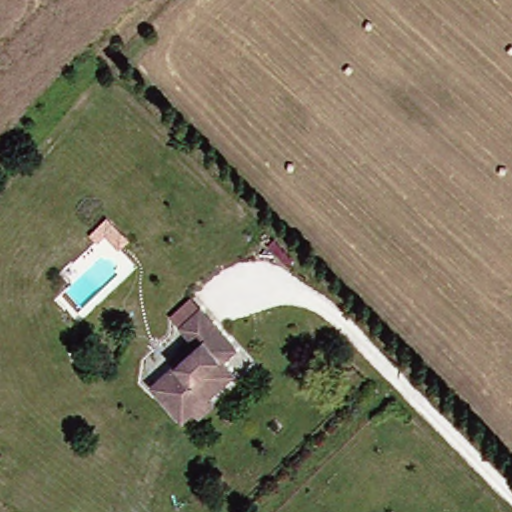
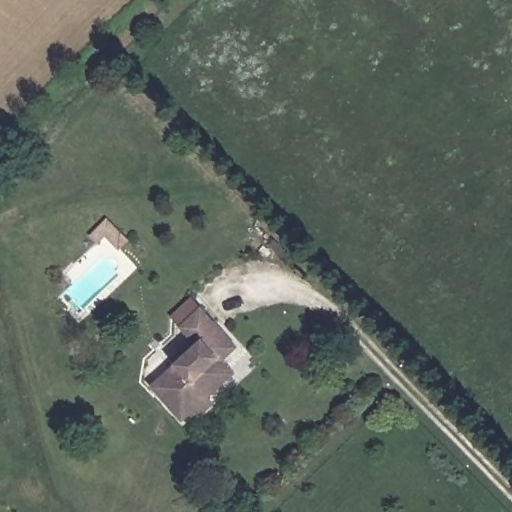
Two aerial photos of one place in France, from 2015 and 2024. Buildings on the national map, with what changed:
unchanged [(210,412),(206,407),(193,419),(161,384),(207,343),(190,325),(181,315),(202,296),(211,305),(247,345),(233,358),(245,371),(219,395),(223,401),(210,412)]

